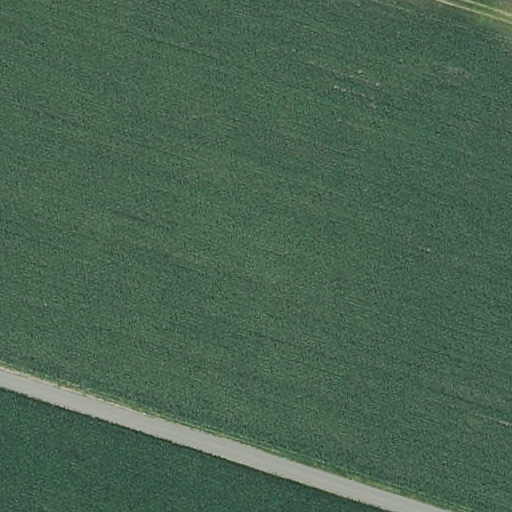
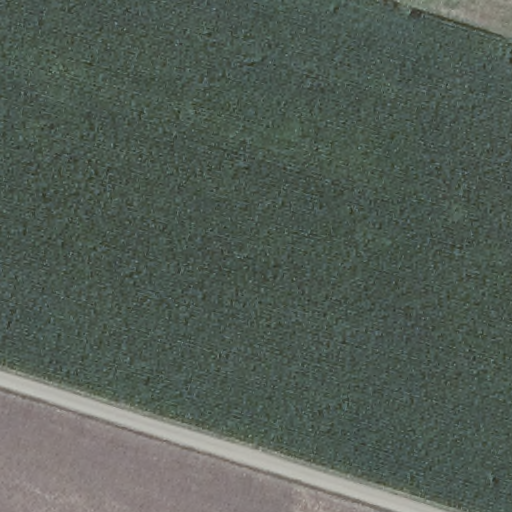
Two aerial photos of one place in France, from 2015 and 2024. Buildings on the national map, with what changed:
[]

